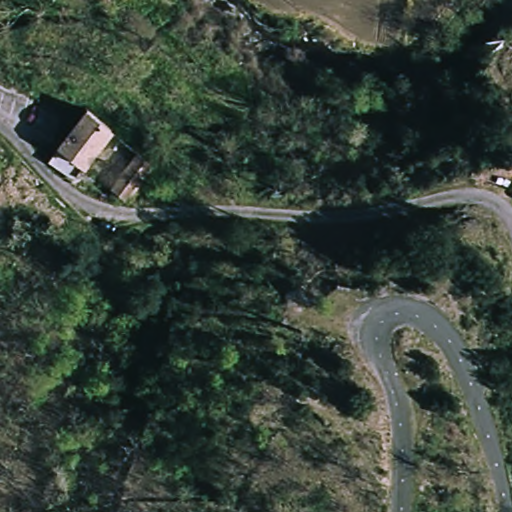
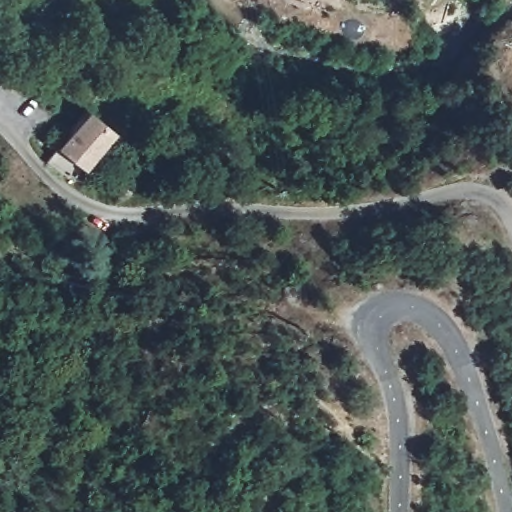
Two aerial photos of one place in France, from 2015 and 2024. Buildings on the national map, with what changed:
unchanged [(81,176),(56,157),(93,104),(121,125),(81,176)]
unchanged [(148,150),(165,162),(138,205),(117,190),(148,150)]

